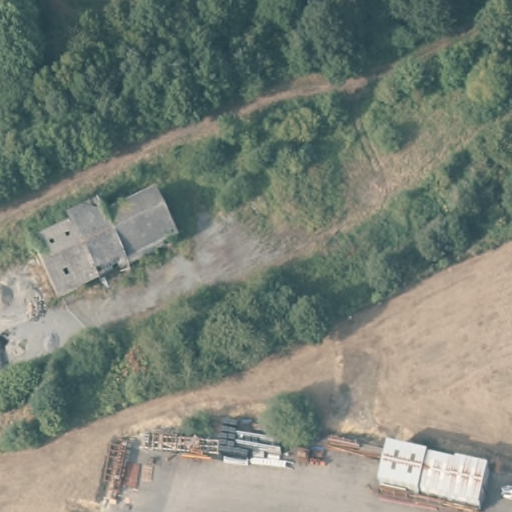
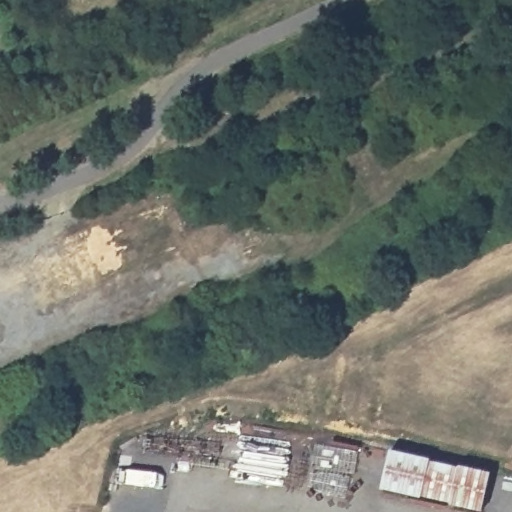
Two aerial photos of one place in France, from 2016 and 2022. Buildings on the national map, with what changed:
demolished [(164,196),(182,242),(106,276),(87,230),(164,196)]
demolished [(106,276),(63,294),(44,249),(87,230),(106,276)]
unchanged [(491,468),(481,507),(382,483),(388,446),(491,468)]

